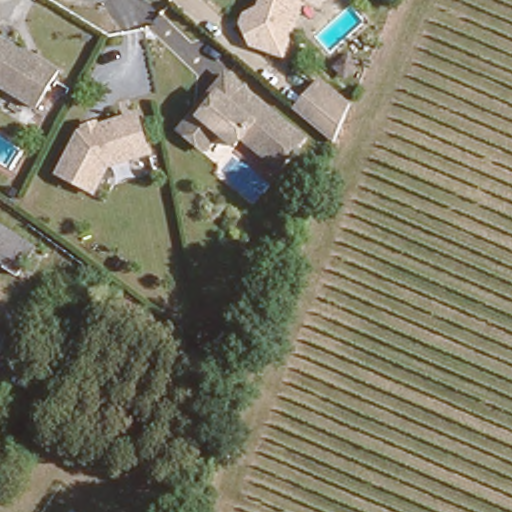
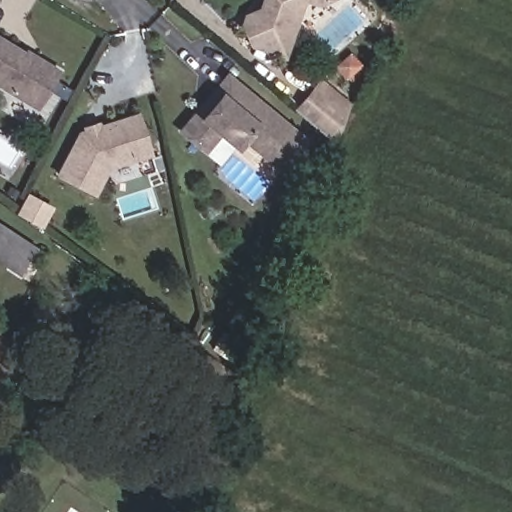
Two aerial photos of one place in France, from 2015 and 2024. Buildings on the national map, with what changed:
unchanged [(305,4),(285,60),(251,51),(238,24),(243,10),(258,8),(261,0),(334,0),(317,9),(305,4)]
unchanged [(25,56),(29,55),(52,69),(29,106),(0,88),(0,40),(25,56)]
unchanged [(244,134),(232,148),(211,132),(199,146),(173,126),(189,109),(198,115),(213,94),(207,89),(221,75),(294,137),(273,160),(244,134)]
unchanged [(298,114),(318,89),(322,83),(352,106),(349,114),(336,144),(298,114)]
unchanged [(56,174),(78,131),(86,129),(84,124),(95,119),(97,124),(136,110),(150,149),(107,164),(92,193),(56,174)]
unchanged [(35,248),(14,274),(0,264),(0,220),(35,248)]
unchanged [(5,334),(0,343),(0,331),(5,334)]

